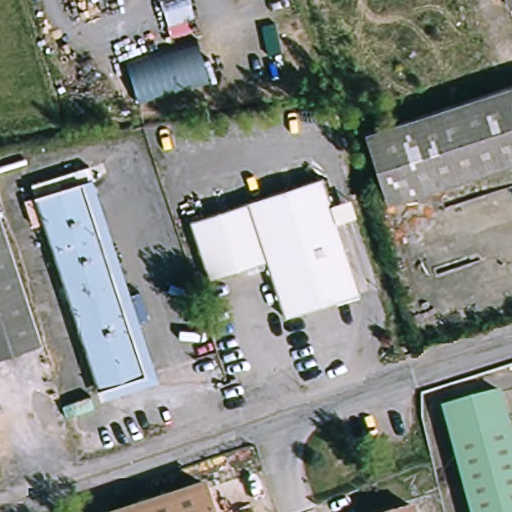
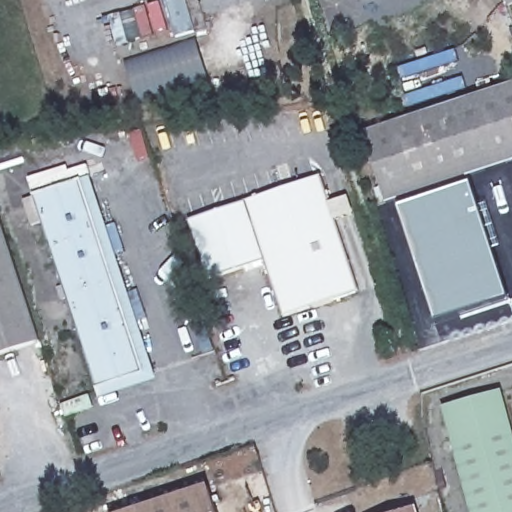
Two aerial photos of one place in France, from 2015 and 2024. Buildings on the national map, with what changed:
unchanged [(502,0),(512,0),(512,14),(507,16),(502,0)]
new [(197,37),(212,83),(139,105),(125,60),(197,37)]
unchanged [(365,130),(443,105),(512,82),(512,159),(385,199),(365,130)]
unchanged [(359,287),(282,314),(264,259),(207,277),(187,219),(322,172),(359,287)]
unchanged [(88,177),(152,374),(106,388),(43,194),(88,177)]
new [(437,322),(400,207),(472,184),(509,298),(437,322)]
unchanged [(37,345),(0,355),(0,230),(37,345)]
unchanged [(458,465),(443,409),(499,393),(502,392),(512,431),(512,512),(470,512),(458,465)]
unchanged [(216,512),(131,512),(209,487),(216,512)]
unchanged [(415,500),(418,512),(375,512),(415,500)]

